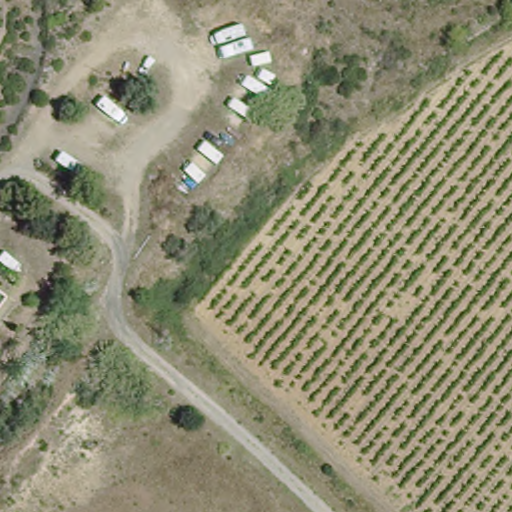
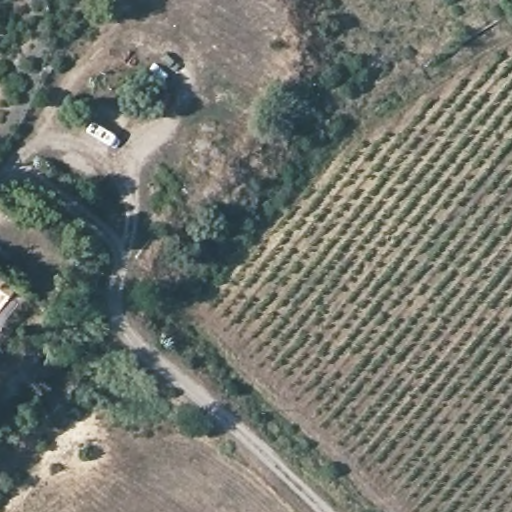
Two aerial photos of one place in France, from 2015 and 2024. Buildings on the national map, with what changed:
unchanged [(5,300),(0,297),(0,274),(16,285),(5,300)]

